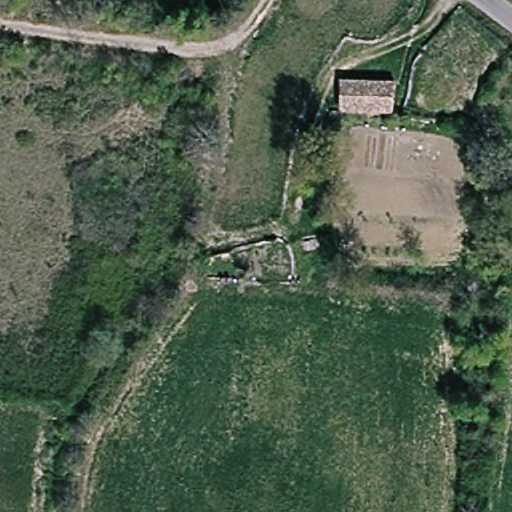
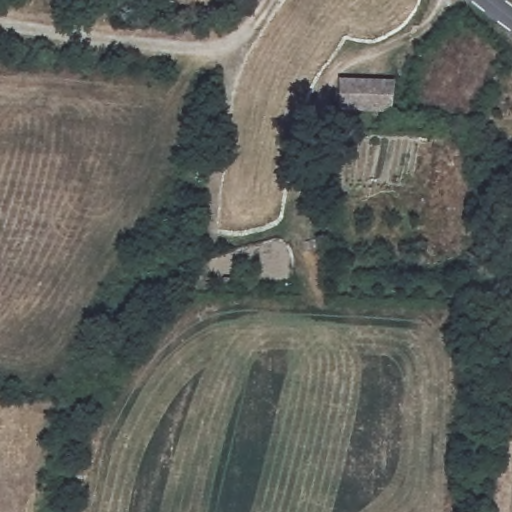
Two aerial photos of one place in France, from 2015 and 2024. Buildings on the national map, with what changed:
unchanged [(338,85),(393,87),(392,107),(337,106),(338,85)]

